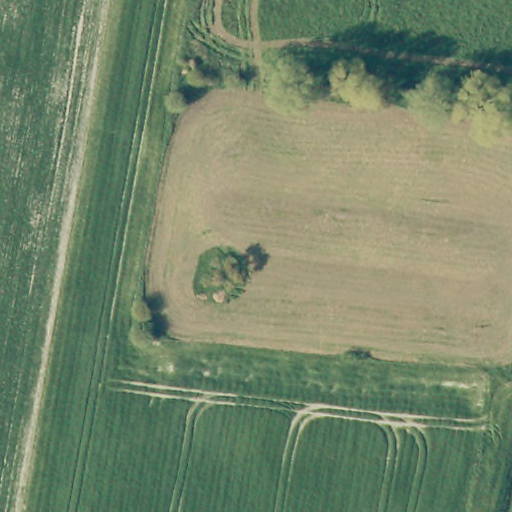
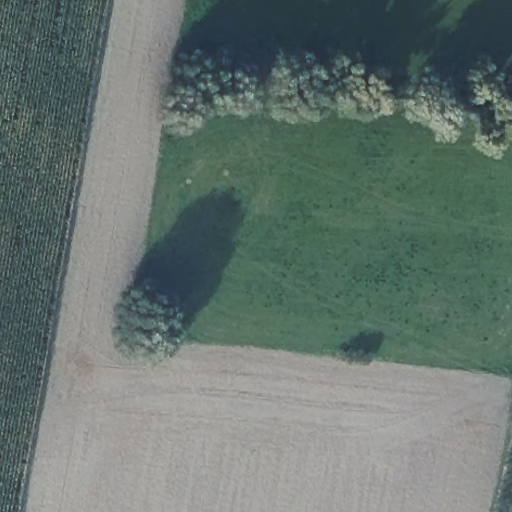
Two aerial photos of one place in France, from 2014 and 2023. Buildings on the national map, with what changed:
[]

